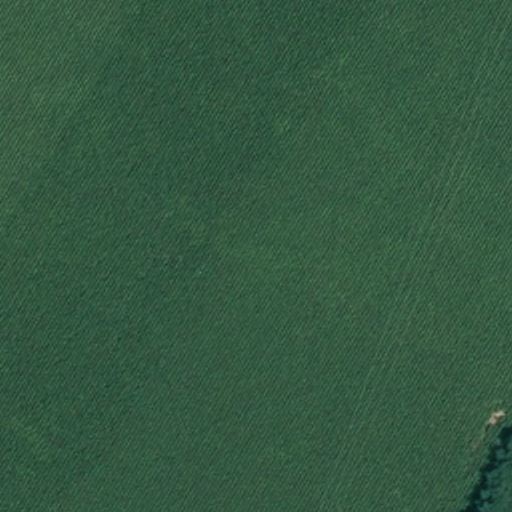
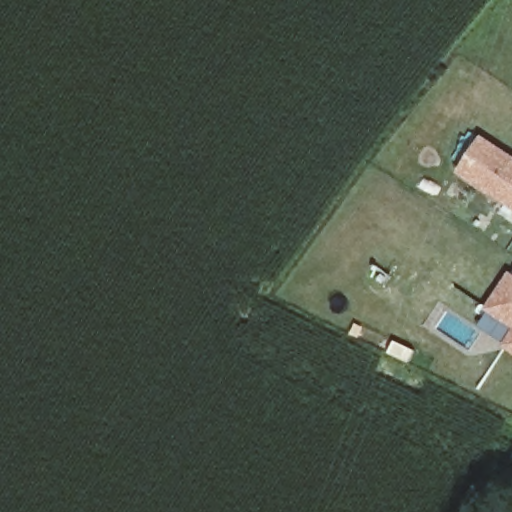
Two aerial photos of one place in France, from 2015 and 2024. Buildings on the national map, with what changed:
new [(512,155),(512,208),(457,172),(482,135),(512,155)]
new [(512,273),(512,327),(484,310),(510,272),(512,273)]
new [(502,345),(512,331),(512,352),(502,345)]

